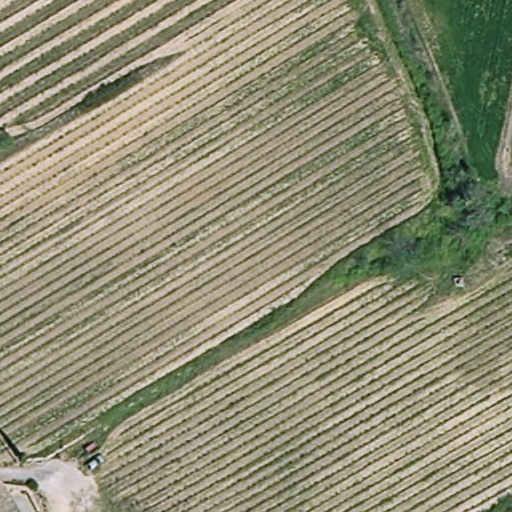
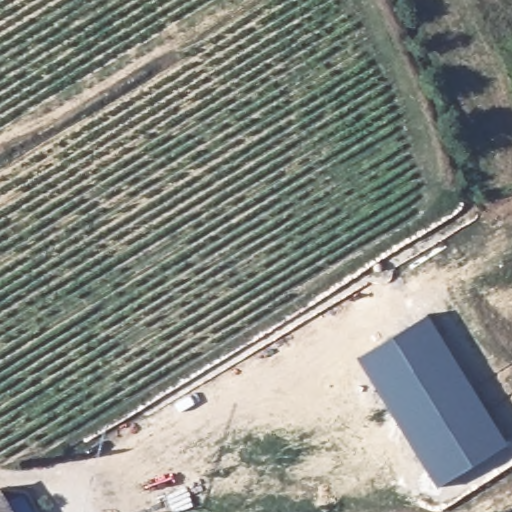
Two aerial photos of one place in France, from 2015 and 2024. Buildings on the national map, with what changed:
new [(508,441),(437,486),(357,358),(429,314),(508,441)]
unchanged [(22,512),(0,512),(0,488),(6,485),(22,512)]

